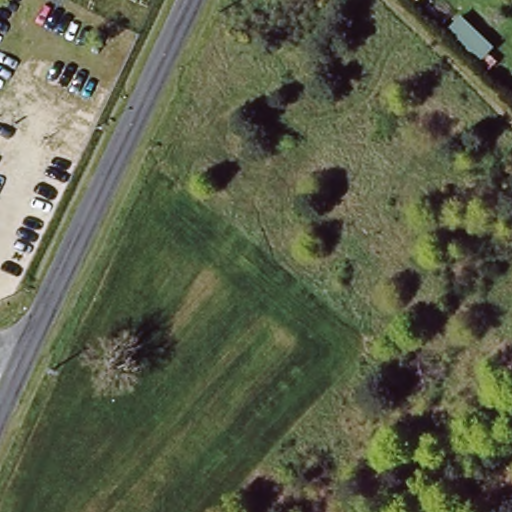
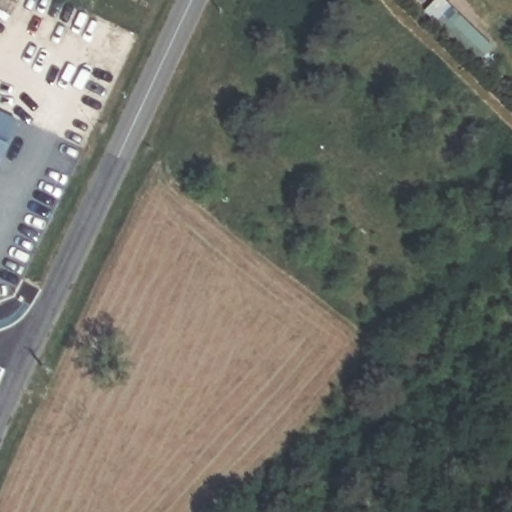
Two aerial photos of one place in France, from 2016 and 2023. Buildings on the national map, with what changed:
new [(10,145),(0,168),(0,112),(20,121),(10,145)]

